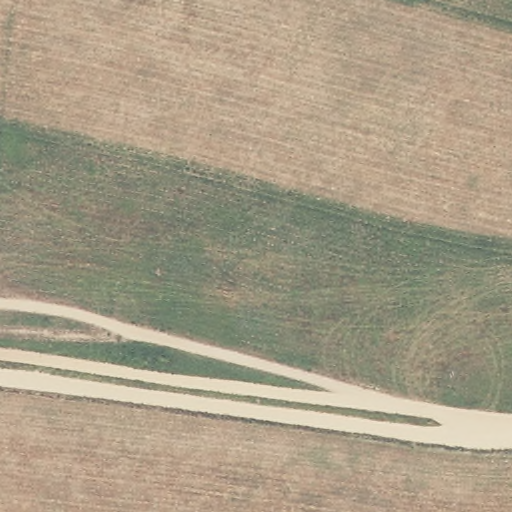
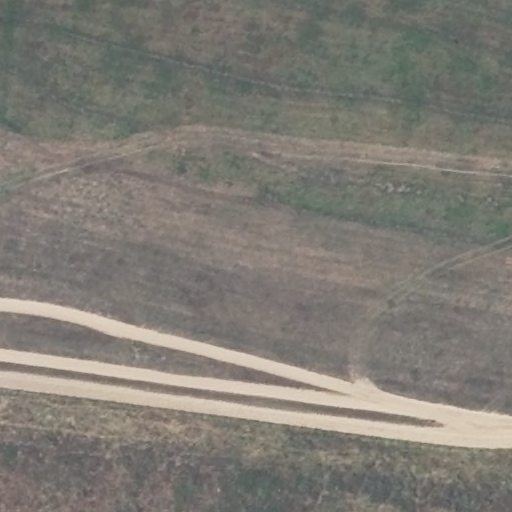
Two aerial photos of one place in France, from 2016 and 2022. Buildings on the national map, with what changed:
[]

